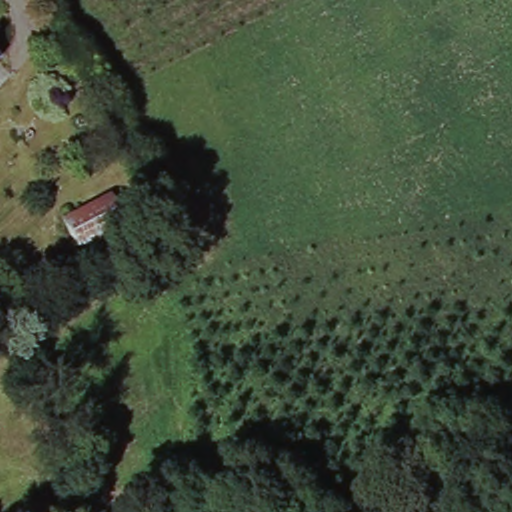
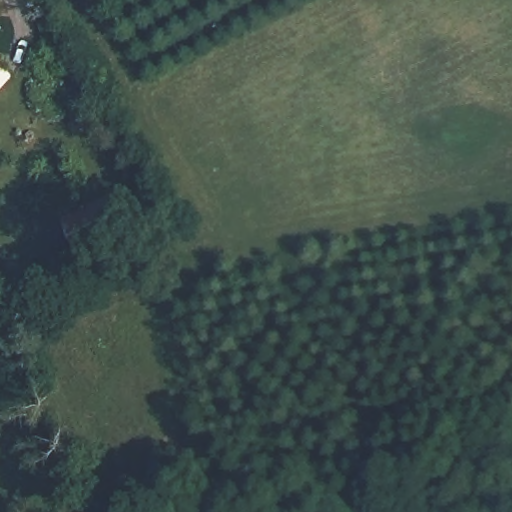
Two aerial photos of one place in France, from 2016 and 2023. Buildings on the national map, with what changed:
unchanged [(5,59),(0,64),(0,54),(5,59)]
unchanged [(118,200),(135,232),(86,257),(69,227),(118,200)]

